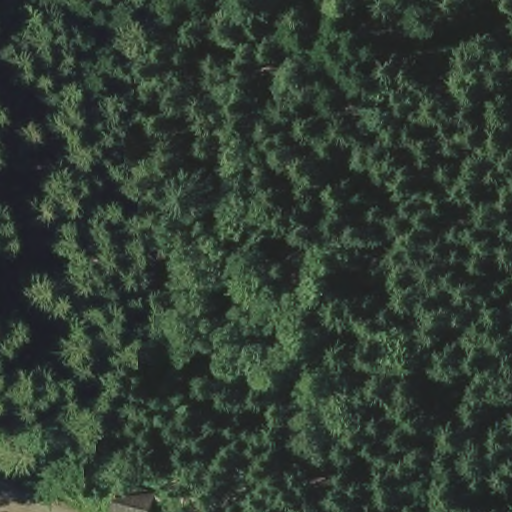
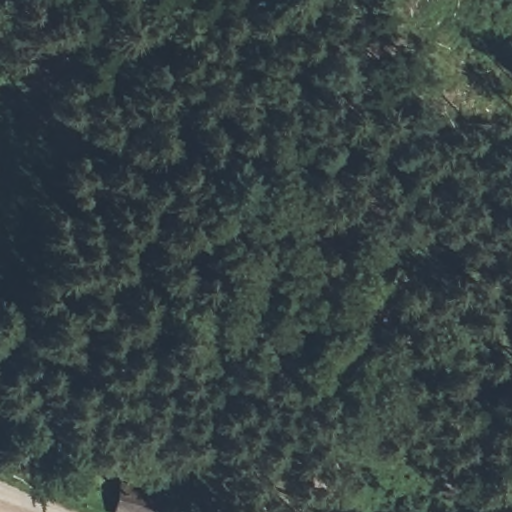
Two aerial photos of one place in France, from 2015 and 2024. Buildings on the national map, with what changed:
unchanged [(161,495),(157,512),(110,512),(118,483),(161,495)]

